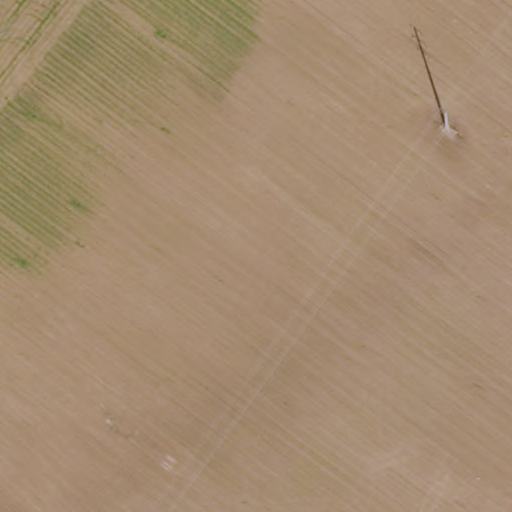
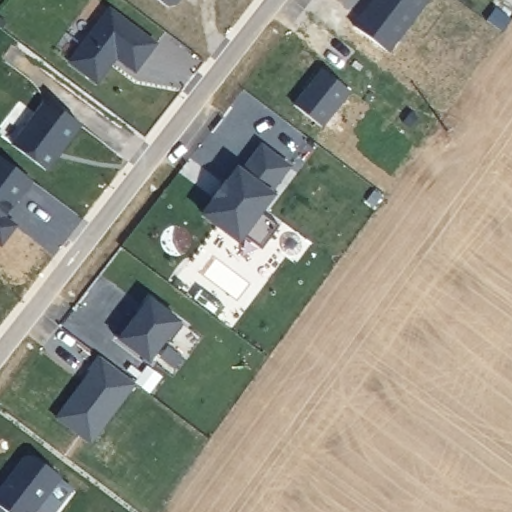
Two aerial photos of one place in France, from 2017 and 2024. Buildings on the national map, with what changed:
new [(166,6),(158,0),(181,0),(178,4),(166,6)]
new [(432,0),(390,54),(354,25),(373,0),(432,0)]
new [(114,65),(98,85),(70,64),(110,11),(157,46),(136,74),(114,58),(111,63),(114,65)]
new [(294,104),(321,69),(351,91),(322,129),(294,104)]
new [(11,144),(43,103),(61,116),(64,113),(83,126),(48,172),(32,159),(11,144)]
new [(274,193),(278,195),(264,214),(280,226),(263,249),(246,238),(241,244),(204,215),(261,143),(293,166),(274,193)]
new [(18,228),(1,249),(0,248),(0,156),(32,183),(5,219),(18,228)]
new [(149,299),(181,323),(149,363),(119,339),(149,299)]
new [(87,369),(98,356),(136,384),(90,445),(55,419),(89,372),(87,369)]
new [(0,506),(0,489),(28,453),(65,481),(51,494),(63,503),(57,512),(38,512),(8,512),(0,506)]

